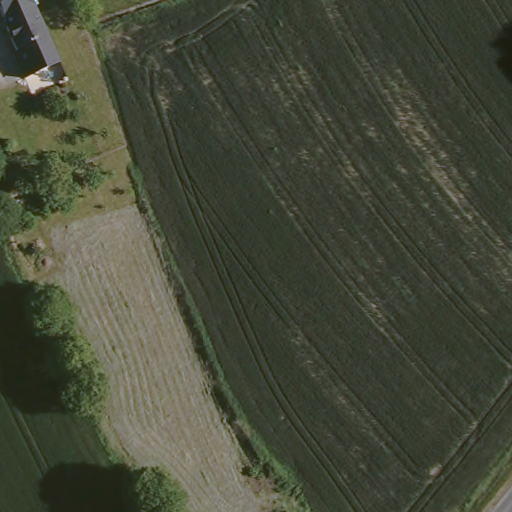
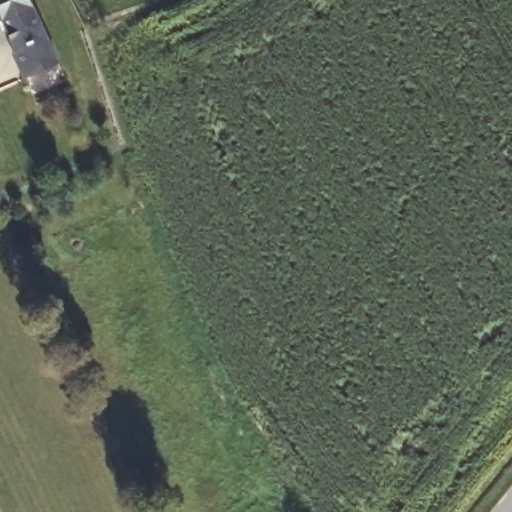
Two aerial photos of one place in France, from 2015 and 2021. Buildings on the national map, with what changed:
unchanged [(61,62),(25,77),(21,67),(15,51),(18,50),(0,6),(0,0),(34,0),(48,32),(57,54),(61,62)]

